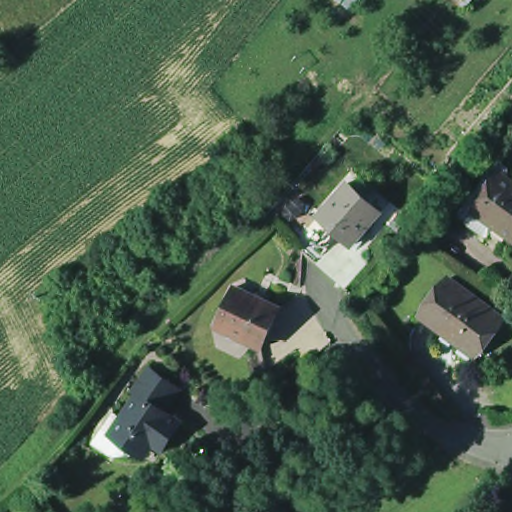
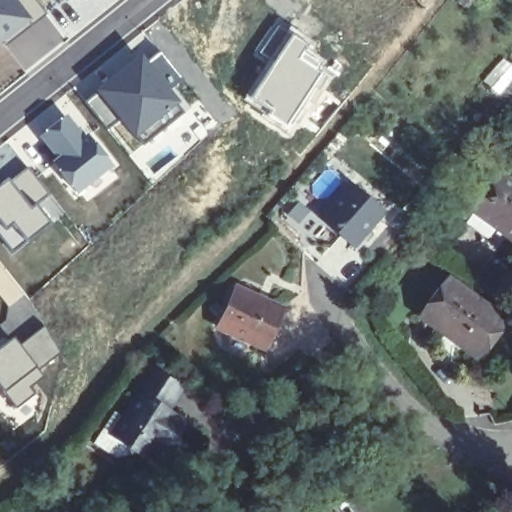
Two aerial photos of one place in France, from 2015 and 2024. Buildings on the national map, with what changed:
new [(43,12),(0,43),(0,0),(34,0),(43,12)]
new [(58,6),(53,0),(65,0),(58,6)]
new [(252,53),(278,19),(294,29),(331,59),(316,88),(286,132),(240,101),(267,64),(252,53)]
new [(140,50),(148,59),(158,51),(181,79),(171,89),(183,104),(143,139),(141,136),(136,140),(91,89),(140,50)]
new [(54,103),(63,114),(65,112),(114,163),(76,195),(49,162),(54,158),(26,125),(54,103)]
new [(7,177),(8,179),(26,166),(64,213),(13,253),(0,238),(0,183),(7,177)]
unchanged [(474,205),(504,171),(512,177),(512,240),(494,224),(484,236),(464,217),(474,205)]
unchanged [(346,183),(381,215),(379,217),(358,239),(351,247),(318,217),(326,208),(344,186),(346,183)]
unchanged [(507,319),(476,354),(425,308),(456,274),(507,319)]
unchanged [(281,311),(263,350),(216,328),(234,288),(281,311)]
new [(43,325),(62,352),(38,370),(18,344),(43,325)]
new [(12,336),(18,344),(38,370),(43,376),(30,387),(35,394),(15,409),(0,390),(0,345),(12,336)]
unchanged [(126,417),(143,395),(138,391),(155,368),(178,385),(163,407),(186,424),(166,450),(157,443),(152,450),(132,455),(128,446),(120,441),(121,439),(114,434),(126,417)]
unchanged [(314,512),(315,511),(316,512),(314,512)]

